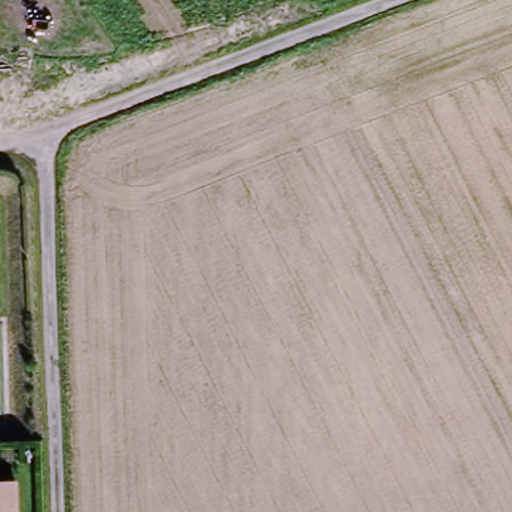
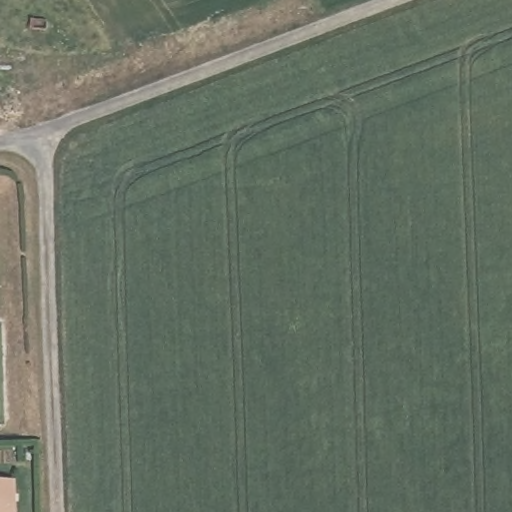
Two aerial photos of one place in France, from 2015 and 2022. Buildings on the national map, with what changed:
unchanged [(14,512),(0,512),(0,481),(13,480),(14,512)]

